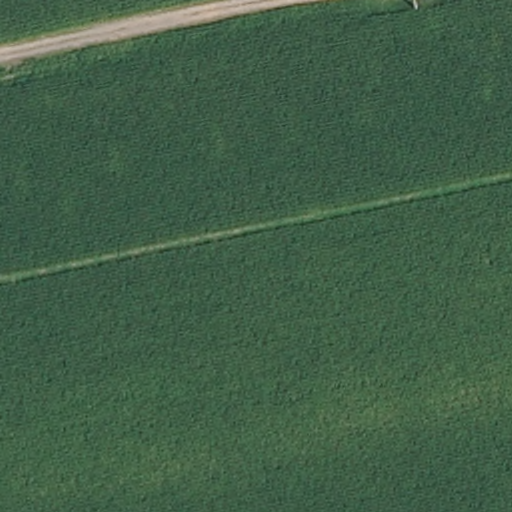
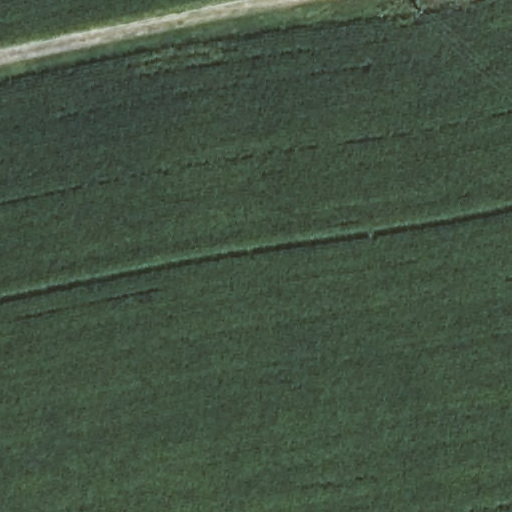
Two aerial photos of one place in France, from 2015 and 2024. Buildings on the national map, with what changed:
[]

